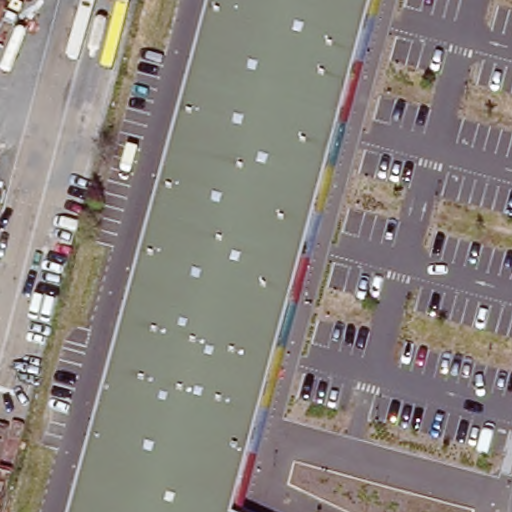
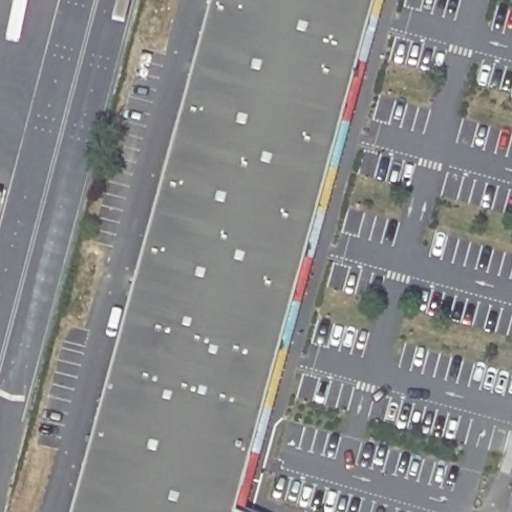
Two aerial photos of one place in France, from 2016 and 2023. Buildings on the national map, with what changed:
unchanged [(234,512),(71,512),(211,0),(374,0),(234,512)]

